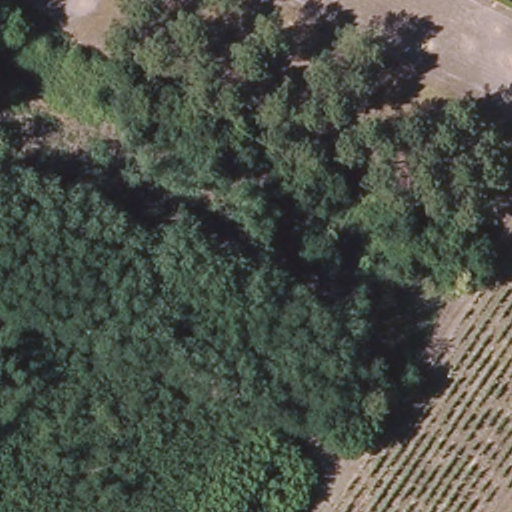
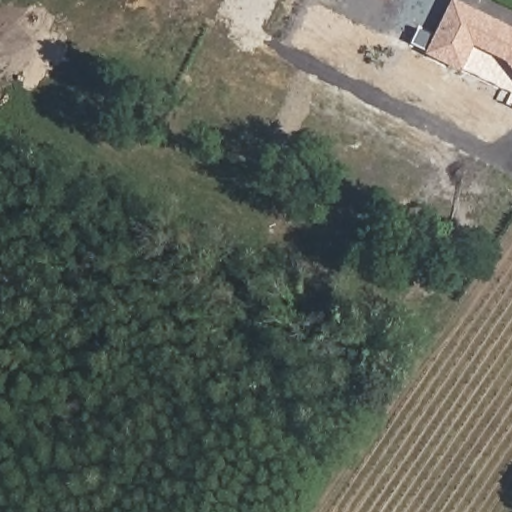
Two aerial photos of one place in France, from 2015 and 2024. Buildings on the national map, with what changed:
new [(465,72),(428,55),(455,0),(456,0),(512,27),(512,66),(508,61),(477,48),(465,72)]

